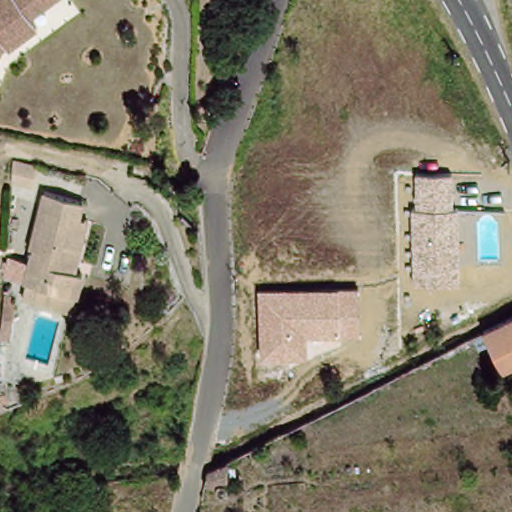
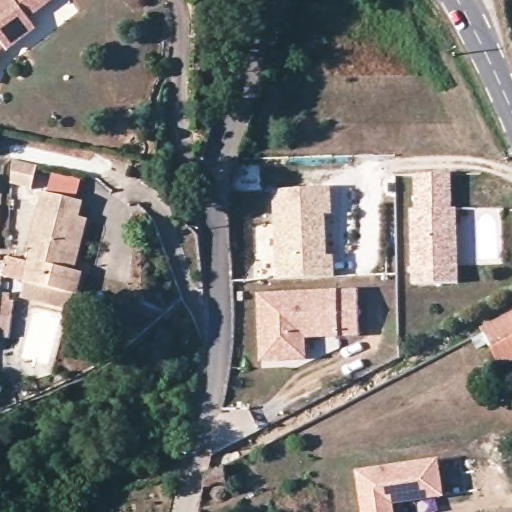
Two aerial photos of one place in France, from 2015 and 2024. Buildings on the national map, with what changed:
unchanged [(0,55),(0,0),(53,0),(44,7),(28,19),(34,26),(0,55)]
unchanged [(0,174),(0,158),(0,154),(26,158),(23,178),(0,174)]
unchanged [(412,211),(417,210),(414,176),(453,174),(454,209),(458,209),(459,282),(414,283),(412,211)]
unchanged [(29,292),(33,274),(38,246),(28,244),(43,188),(74,195),(73,210),(85,214),(75,262),(83,265),(79,284),(76,302),(29,292)]
new [(332,213),(327,214),(331,258),(335,257),(337,276),(276,278),(273,190),(331,190),(332,213)]
unchanged [(360,336),(339,337),(306,339),(307,359),(307,360),(262,360),(259,295),(339,291),(359,290),(360,336)]
unchanged [(504,362),(484,331),(512,313),(512,358),(504,362)]
new [(439,459),(446,498),(395,506),(396,512),(362,512),(356,472),(439,459)]
unchanged [(228,471),(228,484),(208,487),(211,476),(228,471)]

